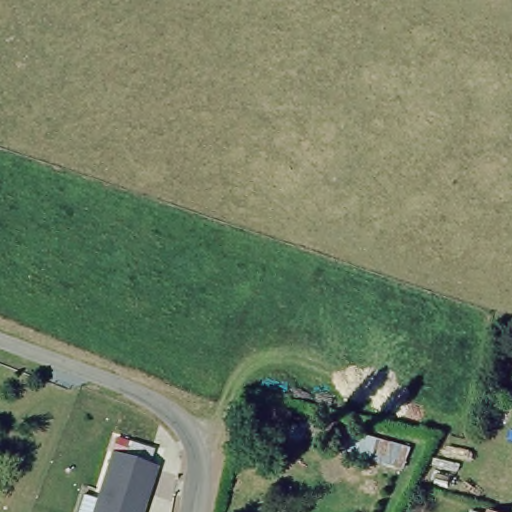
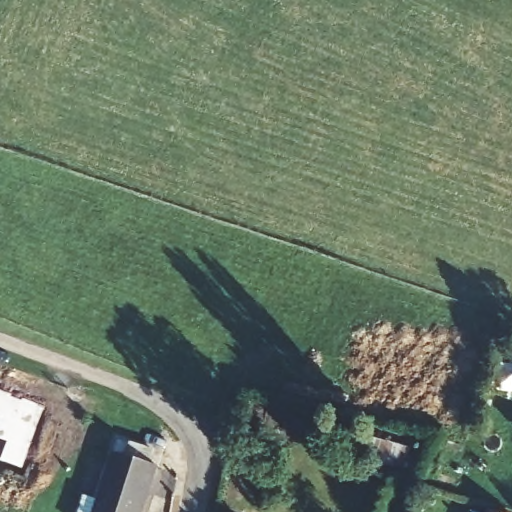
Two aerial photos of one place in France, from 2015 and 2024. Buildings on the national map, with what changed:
new [(45,406),(22,467),(0,460),(0,389),(45,406)]
unchanged [(113,449),(158,464),(151,484),(141,512),(92,512),(107,468),(113,449)]
unchanged [(482,512),(483,507),(497,512),(482,512)]

